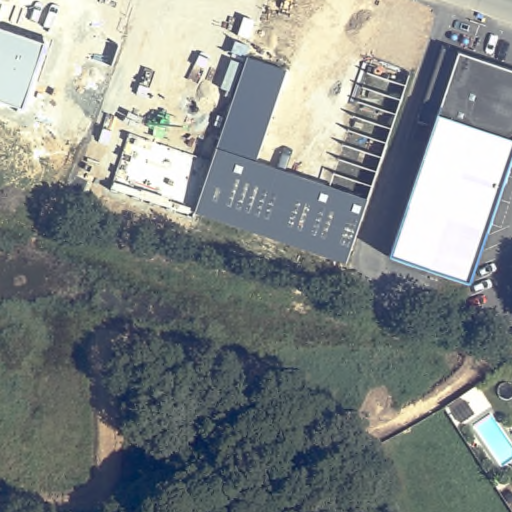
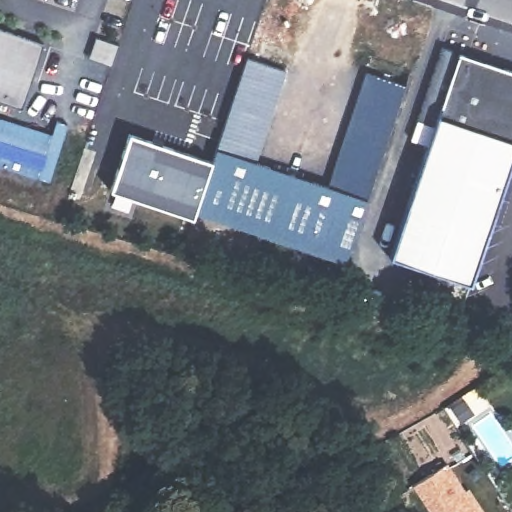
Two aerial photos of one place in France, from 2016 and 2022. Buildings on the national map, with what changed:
unchanged [(43,43),(22,108),(0,100),(0,28),(43,43)]
unchanged [(434,124),(420,120),(444,48),(461,53),(434,124)]
unchanged [(406,211),(437,116),(461,53),(512,73),(512,170),(490,240),(406,211)]
unchanged [(366,201),(345,266),(194,213),(193,217),(110,190),(130,133),(212,161),(216,149),(247,58),(285,70),(256,162),(329,186),(366,73),(404,85),(366,201)]
unchanged [(68,125),(50,181),(0,166),(0,117),(53,134),(57,121),(68,125)]
unchanged [(473,288),(390,259),(406,211),(490,240),(473,288)]
new [(412,486),(447,463),(465,491),(468,489),(483,512),(429,512),(412,486)]

